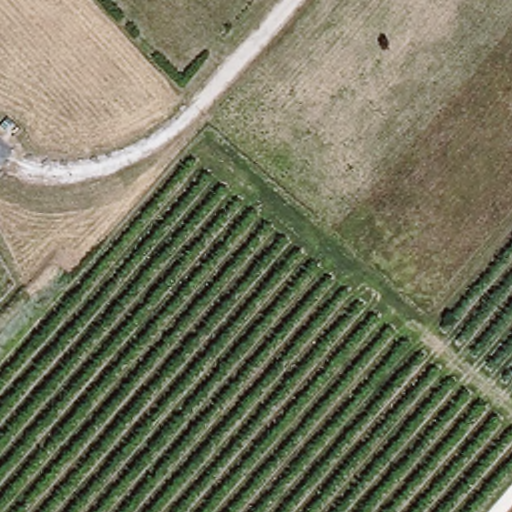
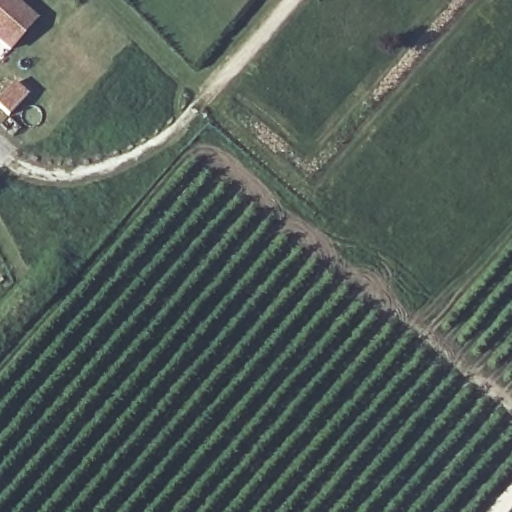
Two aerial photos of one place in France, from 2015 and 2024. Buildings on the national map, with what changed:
new [(8,53),(0,46),(0,0),(8,0),(35,23),(8,53)]
new [(26,100),(6,119),(0,113),(0,99),(13,86),(26,100)]

